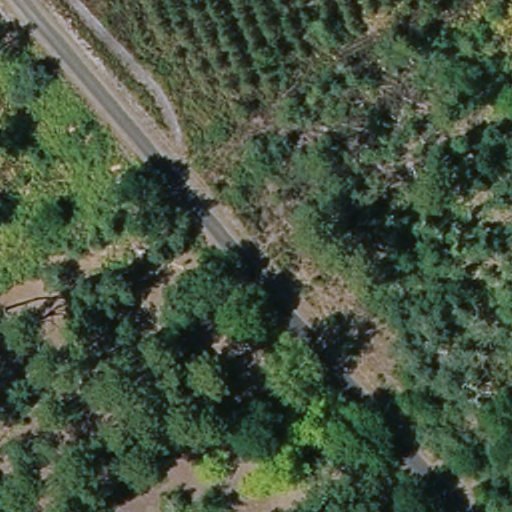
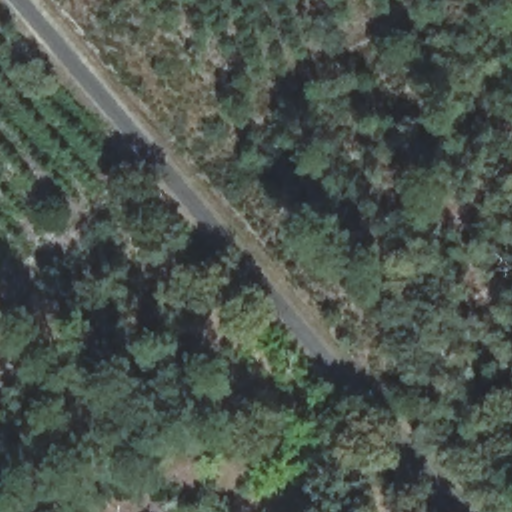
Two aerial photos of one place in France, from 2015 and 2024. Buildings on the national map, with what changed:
unchanged [(1,480),(0,500),(0,479),(1,480)]

